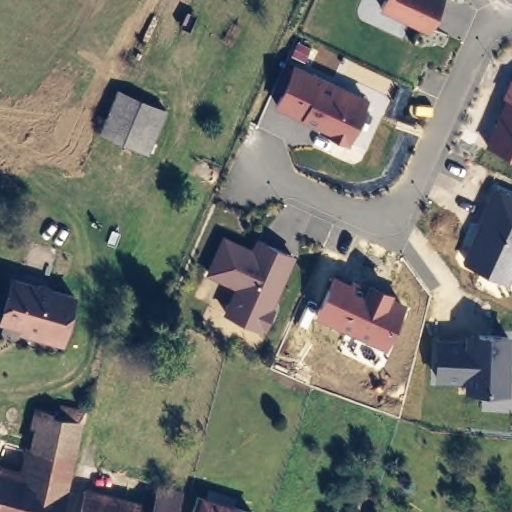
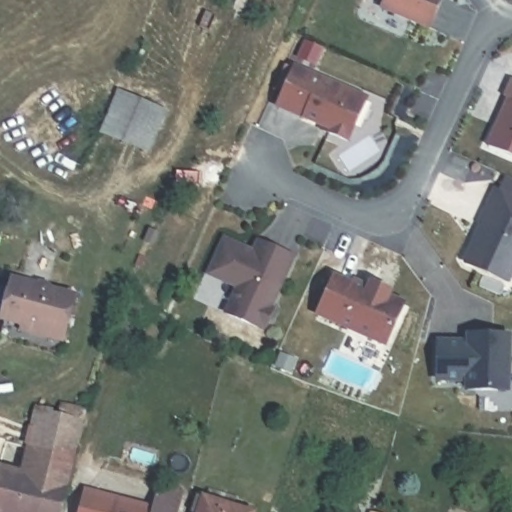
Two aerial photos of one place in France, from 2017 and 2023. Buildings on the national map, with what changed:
unchanged [(380,9),(384,0),(443,0),(431,30),(380,9)]
unchanged [(351,141),(326,132),(328,128),(274,105),(294,63),(371,96),(351,141)]
unchanged [(511,79),(512,80),(512,156),(484,144),(511,79)]
unchanged [(124,90),(166,111),(146,156),(105,135),(124,90)]
unchanged [(508,282),(457,258),(493,184),(512,193),(512,273),(508,282)]
unchanged [(263,330),(223,314),(233,287),(205,273),(221,233),(251,247),(256,236),(294,254),(263,330)]
unchanged [(74,287),(57,343),(0,328),(0,324),(15,270),(74,287)]
unchanged [(387,345),(315,316),(334,273),(406,300),(387,345)]
unchanged [(510,392),(464,391),(464,379),(435,379),(436,334),(468,335),(468,332),(512,333),(510,392)]
unchanged [(72,458),(28,447),(38,410),(79,422),(72,458)]
unchanged [(0,459),(3,460),(1,466),(23,471),(28,447),(72,458),(59,512),(0,512),(0,459)]
unchanged [(83,491),(155,500),(157,479),(189,487),(183,512),(79,512),(83,491)]
unchanged [(244,512),(202,512),(206,499),(244,512)]

